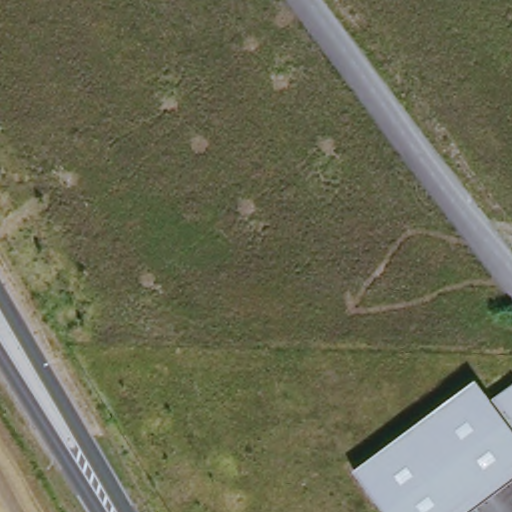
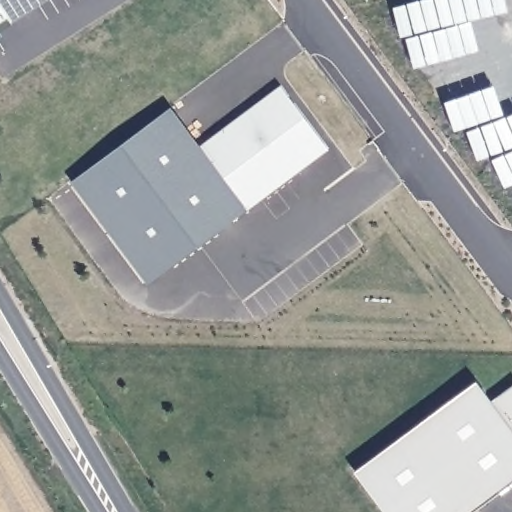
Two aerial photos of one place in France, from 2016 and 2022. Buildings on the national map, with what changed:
new [(0,10),(0,0),(16,0),(0,10)]
new [(325,149),(146,281),(70,179),(167,107),(197,146),(278,86),(325,149)]
unchanged [(512,388),(512,485),(476,512),(384,512),(355,473),(477,381),(492,402),(512,388)]

